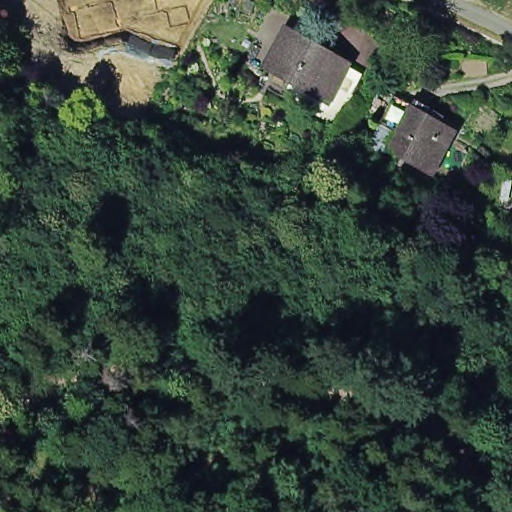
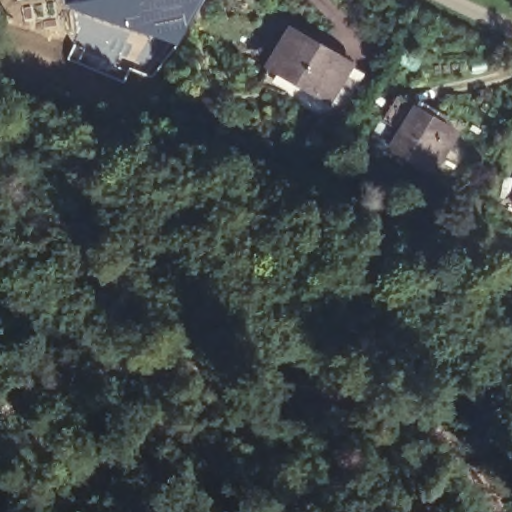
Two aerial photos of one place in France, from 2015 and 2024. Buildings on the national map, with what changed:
new [(174,42),(58,2),(69,0),(198,0),(174,42)]
unchanged [(317,111),(265,82),(284,48),(336,78),(317,111)]
unchanged [(393,137),(415,101),(456,125),(434,162),(393,137)]

